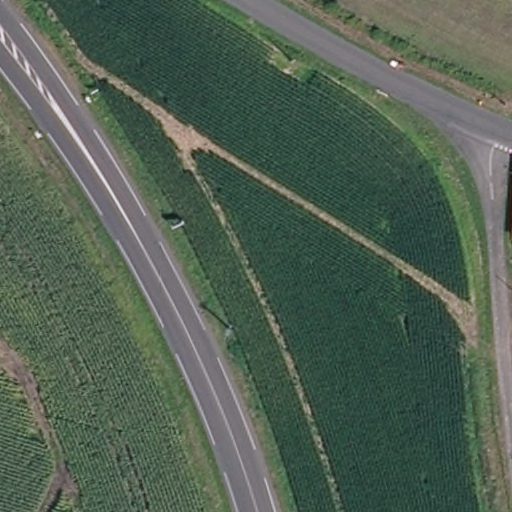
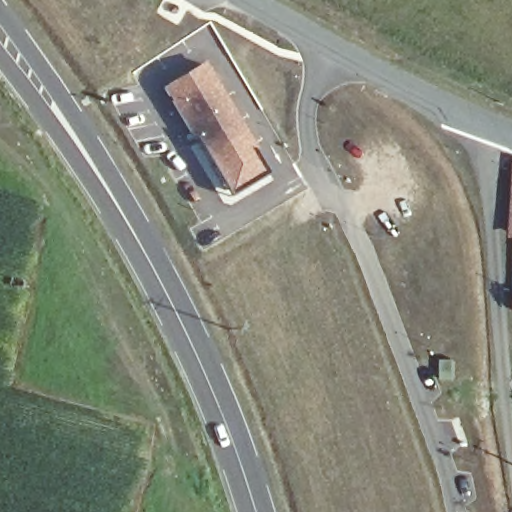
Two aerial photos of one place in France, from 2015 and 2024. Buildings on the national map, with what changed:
new [(206,60),(254,144),(249,147),(263,171),(227,193),(187,132),(160,87),(206,60)]

